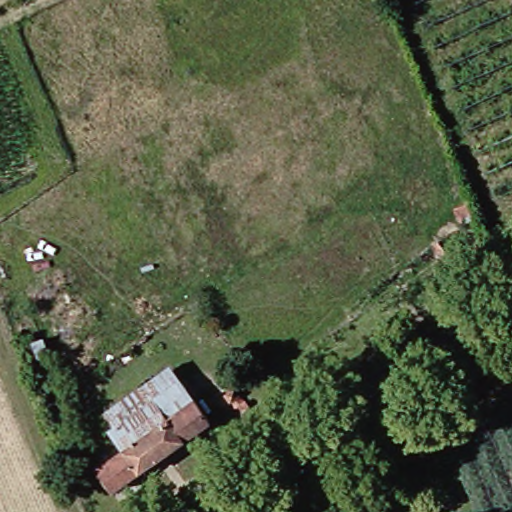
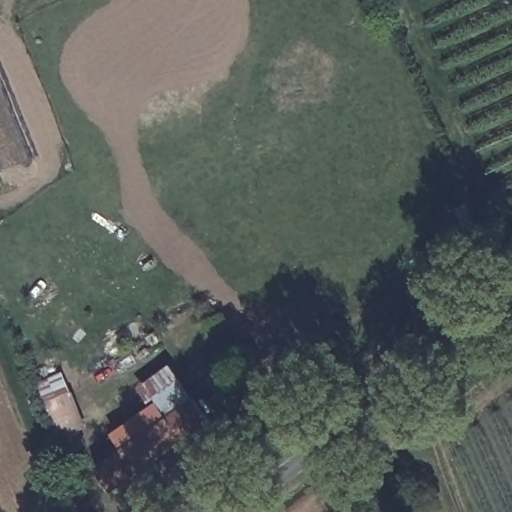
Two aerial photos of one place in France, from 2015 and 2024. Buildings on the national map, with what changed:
unchanged [(131,449),(121,432),(171,398),(180,411),(204,395),(220,419),(128,486),(120,492),(104,467),(112,462),(131,449)]

